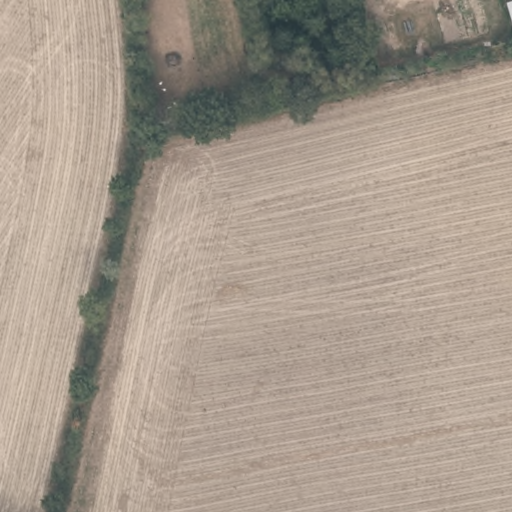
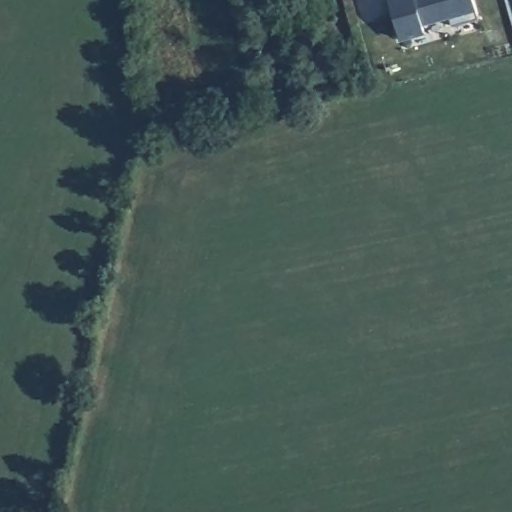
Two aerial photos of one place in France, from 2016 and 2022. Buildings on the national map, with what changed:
new [(478,18),(452,25),(449,16),(422,23),(425,31),(400,38),(389,0),(473,0),(478,18)]

